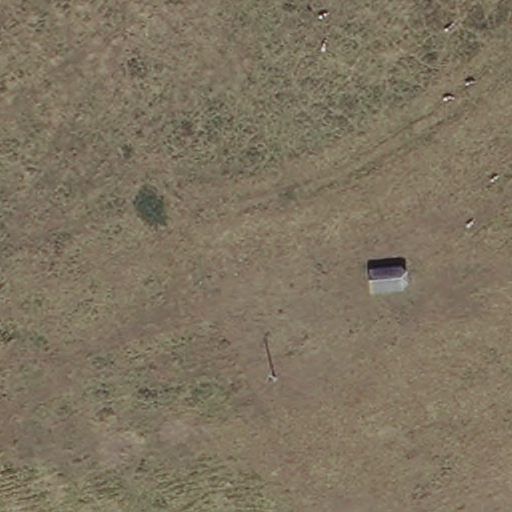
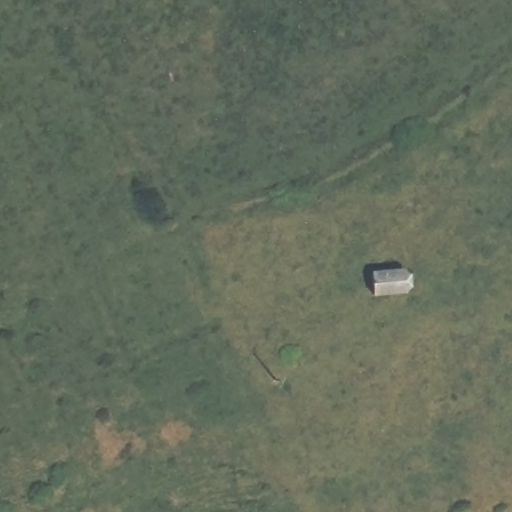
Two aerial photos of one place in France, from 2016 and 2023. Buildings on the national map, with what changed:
unchanged [(403,268),(404,291),(372,294),(370,271),(403,268)]

